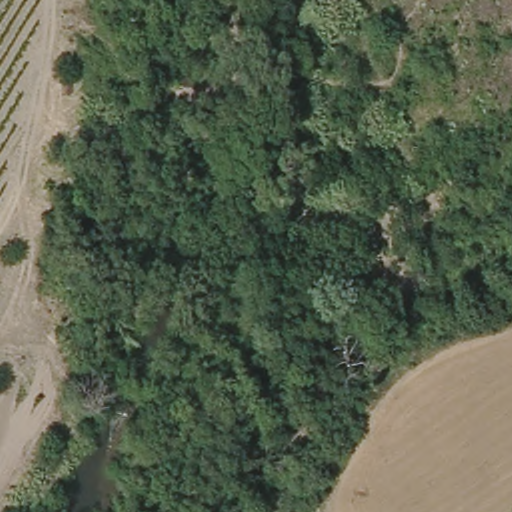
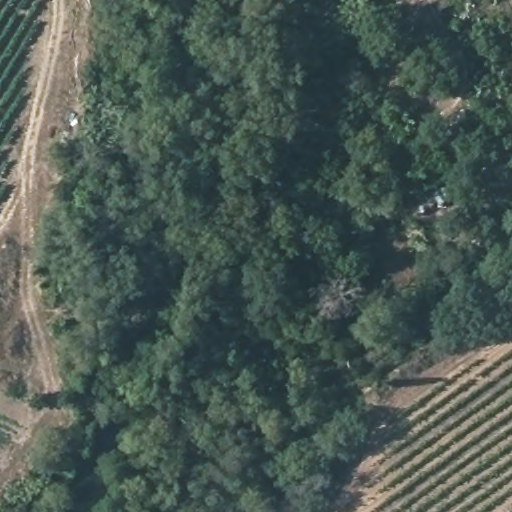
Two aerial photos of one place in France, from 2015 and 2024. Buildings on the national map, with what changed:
[]

